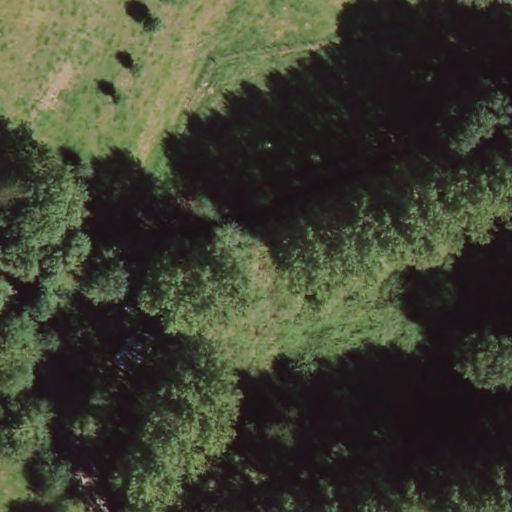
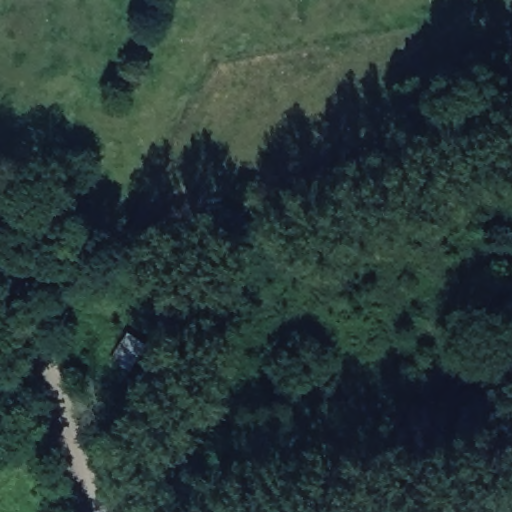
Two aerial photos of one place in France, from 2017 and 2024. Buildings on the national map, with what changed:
unchanged [(131,332),(155,345),(138,371),(115,359),(131,332)]

